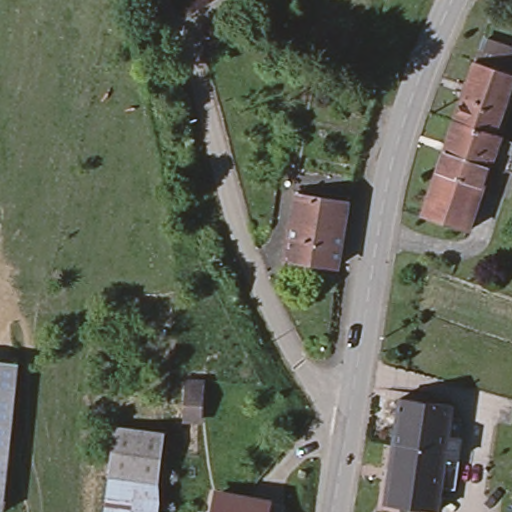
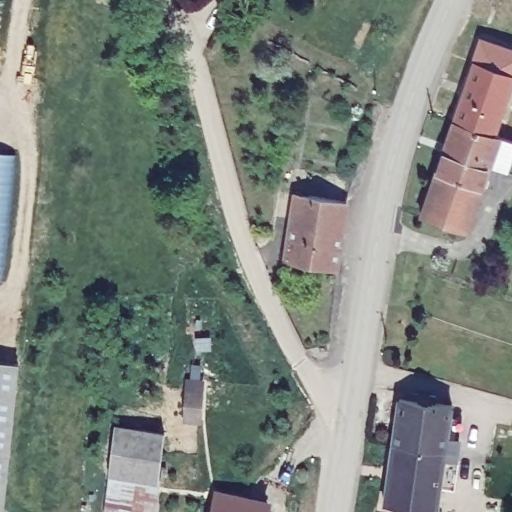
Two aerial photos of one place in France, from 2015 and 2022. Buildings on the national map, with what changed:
unchanged [(512,46),(512,82),(499,131),(454,116),(474,58),(482,37),(512,46)]
unchanged [(499,131),(499,133),(489,160),(474,203),(458,198),(465,177),(436,168),(454,116),(499,131)]
unchanged [(499,133),(512,138),(512,170),(489,160),(499,133)]
new [(14,153),(2,281),(0,281),(0,152),(14,153)]
unchanged [(465,177),(458,198),(474,203),(466,228),(421,213),(436,168),(465,177)]
unchanged [(346,203),(335,268),(285,260),(296,195),(346,203)]
unchanged [(19,362),(4,510),(0,510),(0,360),(19,362)]
unchanged [(183,420),(185,390),(185,380),(202,381),(201,391),(200,421),(183,420)]
unchanged [(454,491),(440,489),(436,512),(426,512),(384,506),(392,445),(399,399),(450,407),(449,418),(462,419),(457,454),(456,461),(458,461),(454,491)]
unchanged [(115,426),(164,433),(158,483),(108,476),(115,426)]
unchanged [(158,483),(160,502),(159,512),(104,512),(108,476),(158,483)]
unchanged [(217,490),(267,499),(265,512),(212,512),(217,490)]

